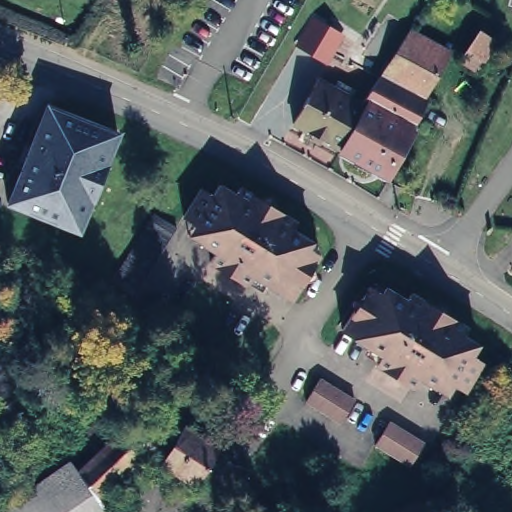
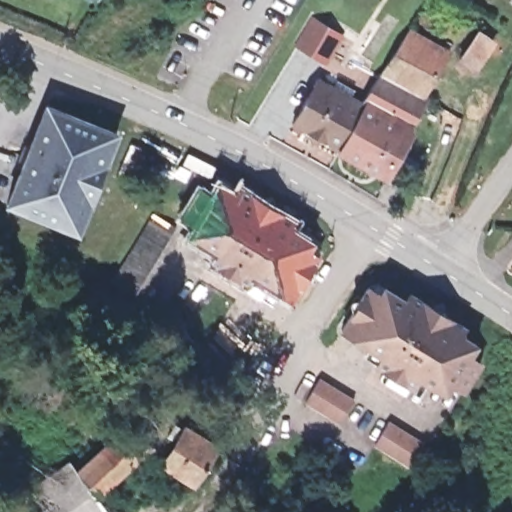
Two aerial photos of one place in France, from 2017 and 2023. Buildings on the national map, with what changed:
unchanged [(312,17),(343,36),(327,63),(296,45),(312,17)]
unchanged [(361,101),(403,27),(437,50),(413,91),(420,97),(380,171),(335,147),(361,101)]
unchanged [(475,72),(460,61),(481,28),(496,38),(475,72)]
unchanged [(285,121),(312,73),(361,101),(335,147),(285,121)]
unchanged [(115,130),(73,229),(5,202),(44,104),(115,130)]
unchanged [(206,257),(213,248),(196,236),(185,228),(192,218),(183,211),(203,182),(213,188),(221,177),(236,189),(242,182),(293,218),(290,224),(311,240),(320,246),(313,256),(283,297),(246,270),(240,280),(225,270),(206,257)]
unchanged [(175,223),(132,286),(110,271),(153,207),(175,223)]
unchanged [(415,380),(408,388),(385,371),(371,362),(377,353),(339,325),(365,286),(374,273),(381,278),(402,293),(406,288),(459,323),(456,326),(473,340),(465,351),(477,361),(456,391),(445,385),(437,395),(427,388),(415,380)]
unchanged [(356,396),(339,421),(305,401),(320,376),(356,396)]
unchanged [(75,453),(82,462),(104,445),(90,425),(114,406),(129,425),(138,418),(157,443),(100,489),(114,512),(0,512),(0,505),(20,491),(75,453)]
unchanged [(390,414),(422,436),(408,457),(375,435),(390,414)]
unchanged [(172,431),(180,421),(216,447),(195,478),(168,460),(184,440),(175,433),(172,431)]

